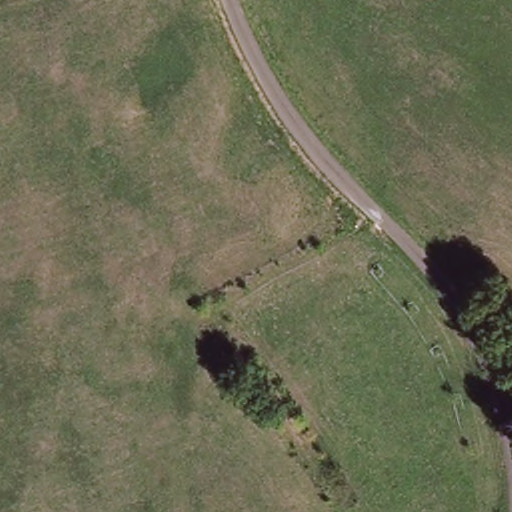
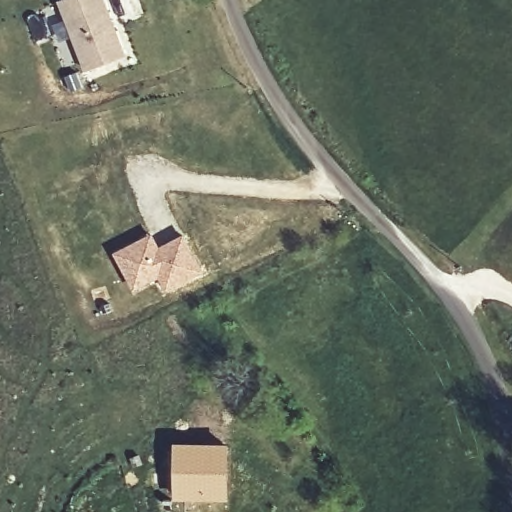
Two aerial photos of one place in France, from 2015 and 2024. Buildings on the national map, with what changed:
new [(128,57),(85,74),(59,1),(61,0),(106,0),(128,57)]
new [(204,272),(167,291),(160,278),(135,292),(115,253),(152,232),(160,246),(185,233),(204,272)]
new [(177,446),(227,446),(226,496),(177,496),(177,446)]

